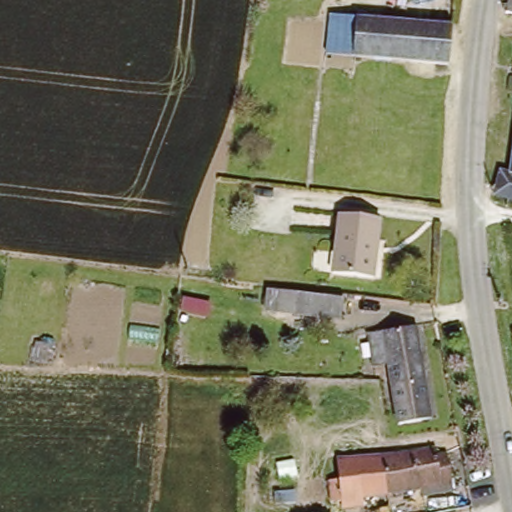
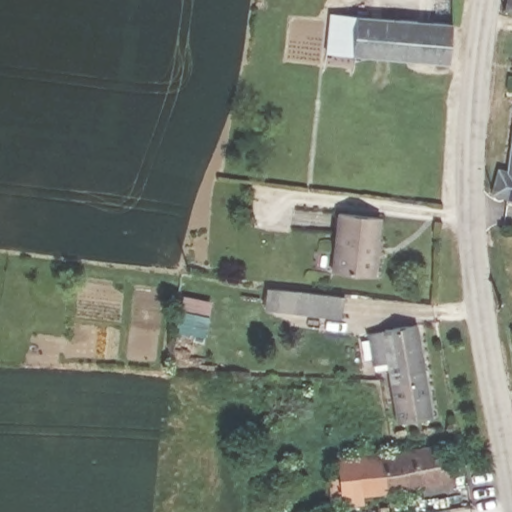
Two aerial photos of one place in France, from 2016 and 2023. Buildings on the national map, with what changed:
unchanged [(509,8),(510,0),(512,0),(512,8),(509,8)]
unchanged [(454,64),(321,53),(324,15),(454,26),(454,64)]
unchanged [(502,202),(506,177),(512,177),(512,203),(502,202)]
unchanged [(334,217),(384,221),(378,279),(329,273),(334,217)]
unchanged [(271,318),(276,289),(341,299),(340,321),(271,318)]
unchanged [(426,330),(439,428),(400,430),(393,368),(378,370),(373,334),(426,330)]
unchanged [(366,488),(366,500),(346,501),(345,486),(326,486),(326,470),(341,469),(341,454),(458,443),(461,482),(366,488)]
unchanged [(453,512),(445,512),(453,511),(453,512)]

